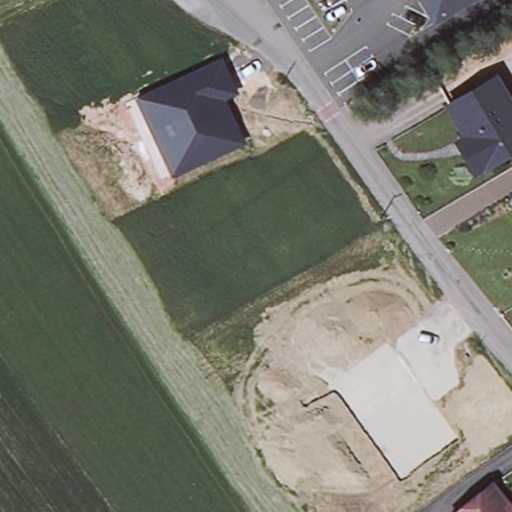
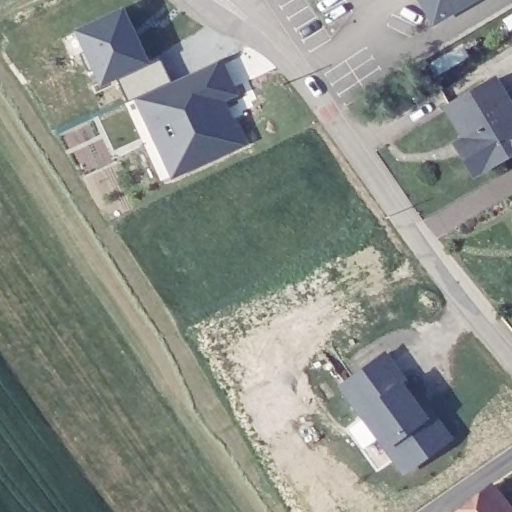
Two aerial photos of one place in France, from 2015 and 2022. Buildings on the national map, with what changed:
unchanged [(482,1),(436,28),(419,0),(481,0),(482,1)]
unchanged [(135,99),(222,59),(239,95),(227,100),(246,146),(172,178),(135,99)]
unchanged [(512,109),(512,151),(475,173),(457,143),(466,138),(448,108),(495,79),(512,109)]
new [(407,380),(401,382),(428,417),(435,413),(455,439),(403,477),(385,451),(354,409),(337,387),(385,351),(407,380)]
unchanged [(497,490),(512,508),(512,512),(451,512),(490,481),(497,490)]

